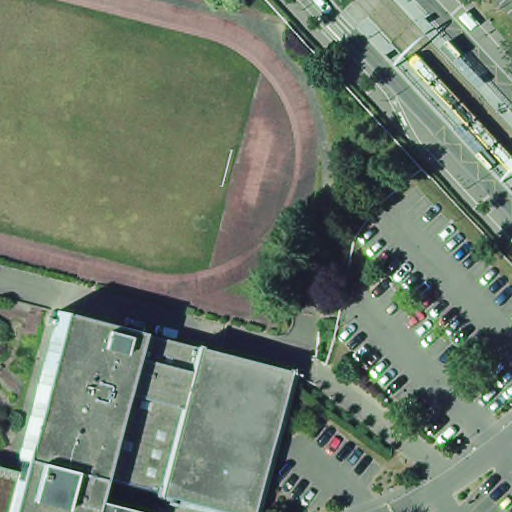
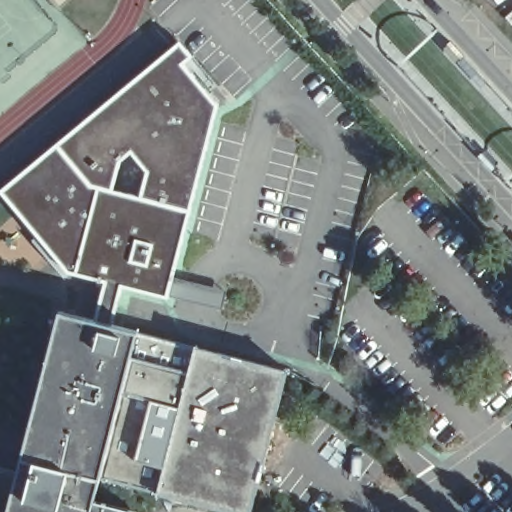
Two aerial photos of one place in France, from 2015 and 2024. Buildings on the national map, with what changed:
new [(168,297),(122,285),(112,325),(94,320),(104,281),(69,272),(0,191),(0,190),(180,41),(192,55),(183,63),(219,105),(168,297)]
unchanged [(7,512),(18,471),(59,311),(138,331),(99,477),(94,497),(104,500),(138,510),(138,512),(7,512)]
unchanged [(195,345),(157,493),(99,477),(138,331),(195,345)]
unchanged [(287,370),(266,451),(252,506),(250,512),(228,512),(224,511),(199,504),(157,493),(195,345),(238,357),(287,370)]
unchanged [(18,471),(7,512),(0,512),(0,467),(18,471)]

